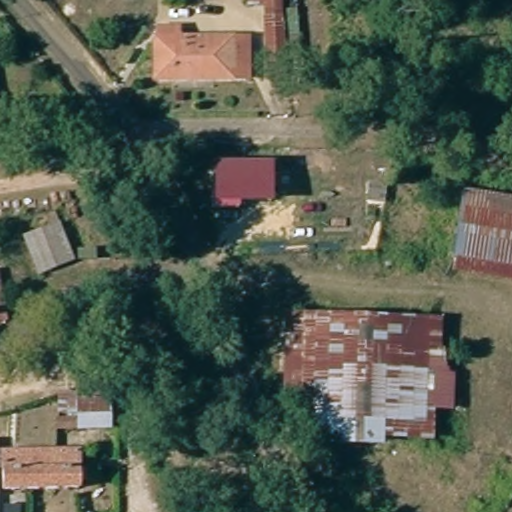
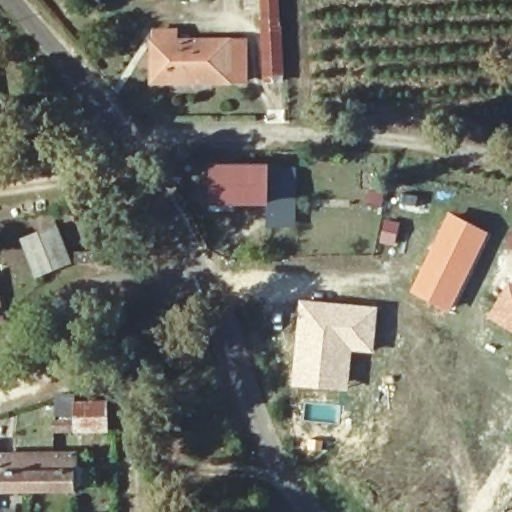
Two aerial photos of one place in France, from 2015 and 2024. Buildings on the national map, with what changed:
unchanged [(259,0),(287,0),(290,80),(260,84),(259,0)]
unchanged [(244,42),(244,79),(148,79),(148,41),(244,42)]
unchanged [(265,170),(266,204),(222,204),(222,170),(265,170)]
new [(265,170),(298,171),(298,233),(267,234),(266,204),(265,170)]
new [(447,210),(489,232),(448,313),(406,291),(447,210)]
unchanged [(41,277),(22,245),(55,226),(73,258),(41,277)]
new [(507,280),(512,283),(512,334),(485,318),(507,280)]
new [(299,298),(379,306),(374,354),(353,352),(349,392),(290,386),(299,298)]
demolished [(351,317),(356,416),(304,415),(307,316),(351,317)]
demolished [(375,415),(356,416),(351,317),(405,318),(428,320),(426,355),(423,438),(406,437),(375,436),(375,415)]
new [(53,437),(53,421),(57,421),(56,395),(75,395),(75,402),(109,400),(111,434),(76,435),(53,437)]
demolished [(91,417),(91,428),(72,428),(69,426),(69,417),(91,417)]
unchanged [(80,457),(80,492),(3,495),(2,457),(80,457)]

